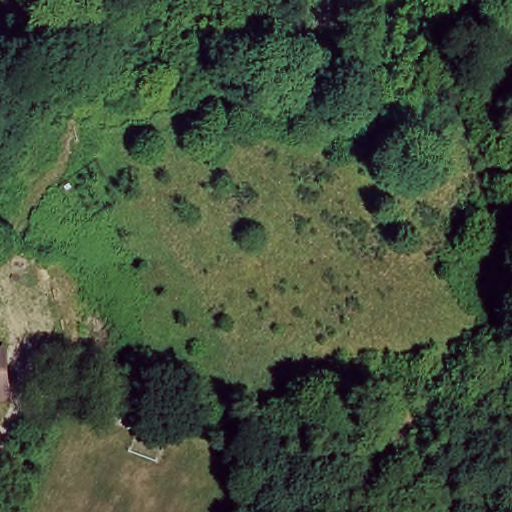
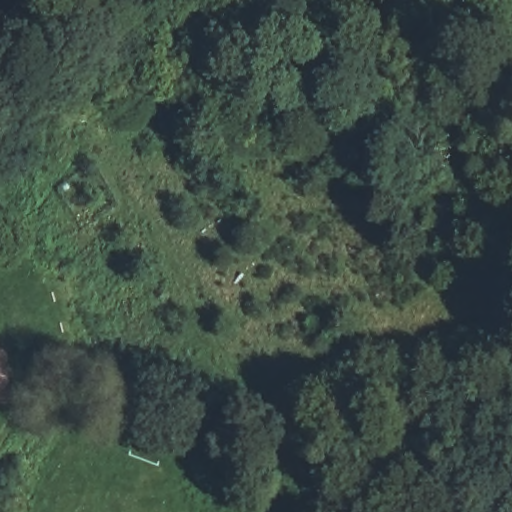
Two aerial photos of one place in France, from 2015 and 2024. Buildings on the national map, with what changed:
unchanged [(0,408),(0,352),(10,350),(11,406),(0,408)]

